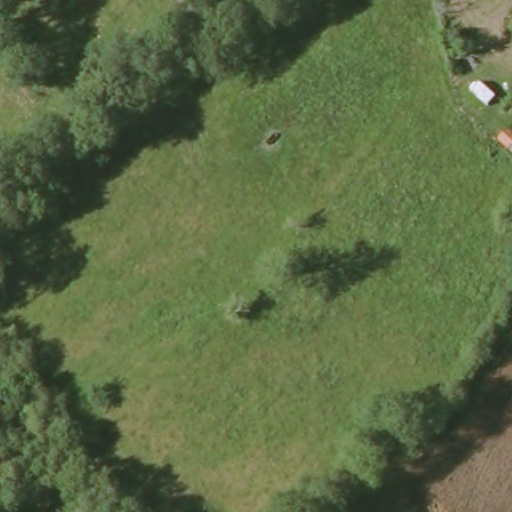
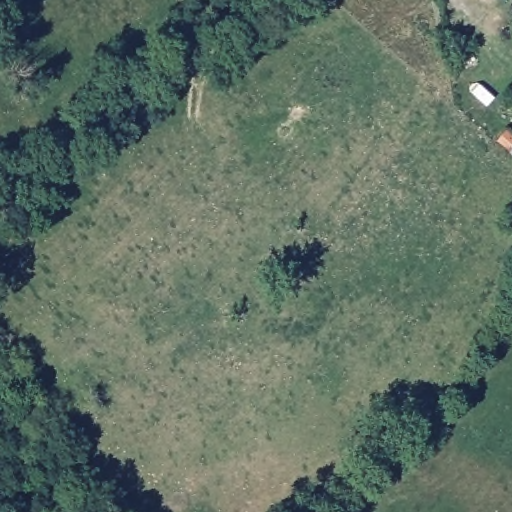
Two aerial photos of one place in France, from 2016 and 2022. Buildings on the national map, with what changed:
unchanged [(486,0),(493,0),(491,3),(486,0)]

